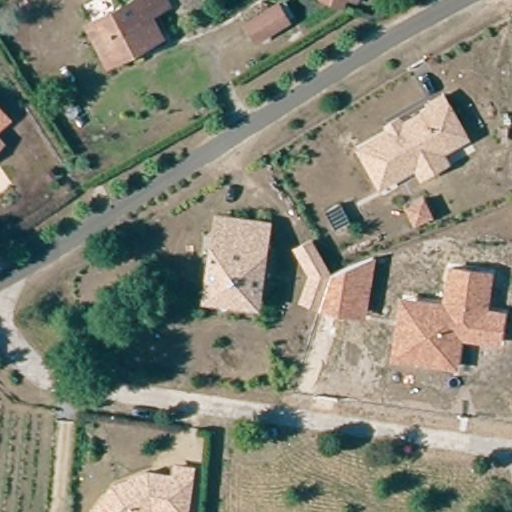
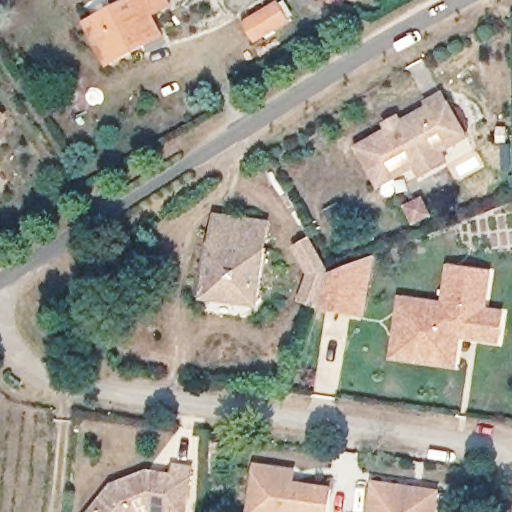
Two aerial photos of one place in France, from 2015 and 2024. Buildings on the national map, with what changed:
unchanged [(90,26),(105,17),(136,0),(166,0),(170,7),(162,12),(152,17),(164,38),(146,47),(137,52),(111,67),(109,62),(90,26)]
unchanged [(331,3),(332,0),(361,0),(357,12),(331,3)]
unchanged [(268,45),(258,27),(290,9),(300,25),(268,45)]
unchanged [(440,149),(446,160),(420,174),(412,159),(408,161),(410,166),(379,183),(358,145),(389,127),(386,122),(397,115),(400,122),(430,105),(428,101),(443,92),(464,131),(466,135),(440,149)]
unchanged [(9,119),(0,127),(0,109),(9,119)]
unchanged [(0,146),(0,139),(4,143),(0,146)]
unchanged [(321,210),(335,203),(343,221),(330,228),(321,210)]
unchanged [(264,250),(267,250),(260,302),(250,310),(215,305),(209,296),(215,244),(219,222),(227,224),(267,229),(264,250)]
unchanged [(320,310),(297,301),(307,272),(291,248),(312,236),(332,272),(377,255),(367,318),(320,310)]
unchanged [(390,361),(400,296),(445,302),(449,265),(495,271),(490,307),(508,310),(503,346),(463,341),(460,371),(390,361)]
new [(296,482),(335,487),(331,512),(248,512),(255,464),(298,471),(296,482)]
unchanged [(108,483),(141,470),(166,474),(166,465),(186,466),(184,498),(183,512),(86,512),(108,483)]
new [(373,482),(441,491),(438,512),(369,512),(373,482)]

